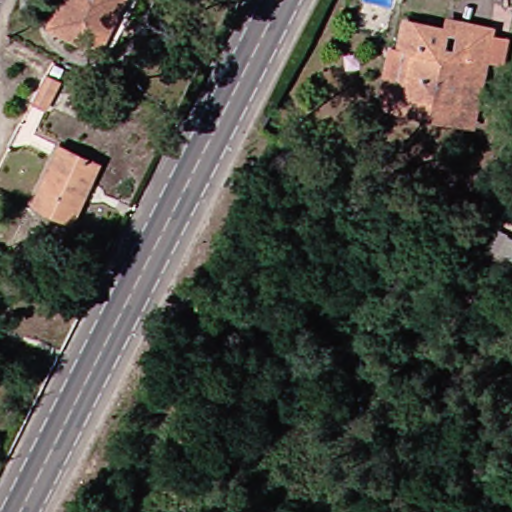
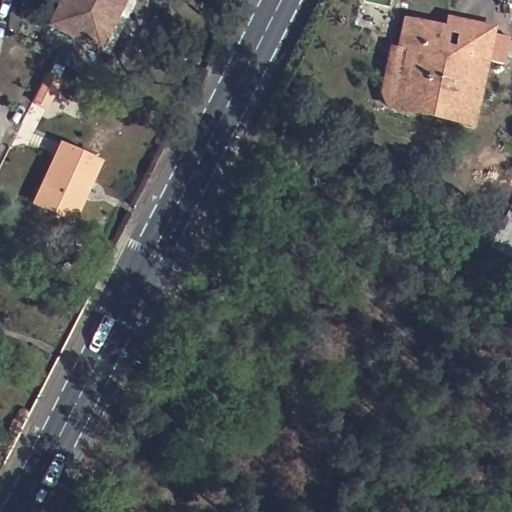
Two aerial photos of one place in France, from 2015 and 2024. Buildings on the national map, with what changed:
unchanged [(99,51),(39,20),(49,0),(125,0),(99,51)]
unchanged [(404,59),(394,56),(400,27),(436,34),(438,22),(485,32),(484,36),(502,40),(496,67),(479,64),(467,117),(395,102),(404,59)]
unchanged [(465,129),(382,111),(384,100),(376,97),(385,55),(394,56),(404,59),(395,102),(467,117),(465,129)]
unchanged [(46,75),(59,81),(46,109),(32,102),(46,75)]
unchanged [(90,161),(71,201),(74,203),(66,221),(28,204),(55,146),(90,161)]
unchanged [(512,240),(512,260),(498,253),(507,237),(512,240)]

